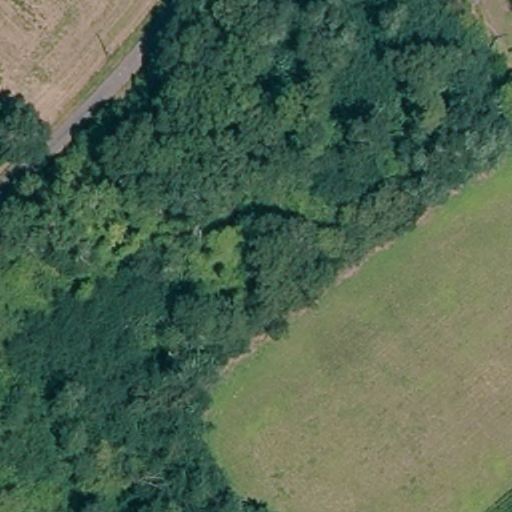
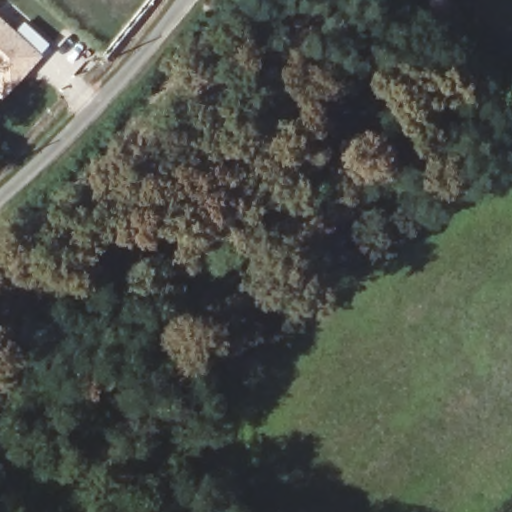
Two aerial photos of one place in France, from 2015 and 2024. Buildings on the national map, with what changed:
new [(25,24),(48,45),(10,87),(1,97),(0,96),(0,22),(14,35),(25,24)]

